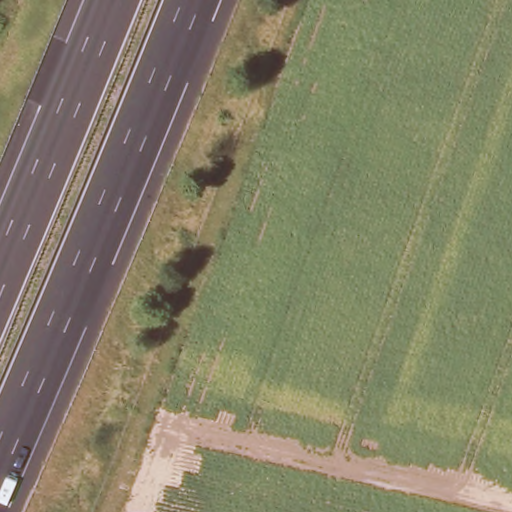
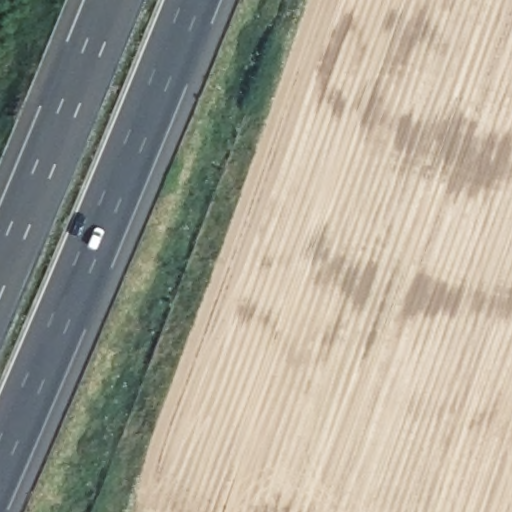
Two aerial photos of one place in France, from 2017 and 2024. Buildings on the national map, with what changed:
unchanged [(257,131),(266,134),(259,151),(251,148),(257,131)]

